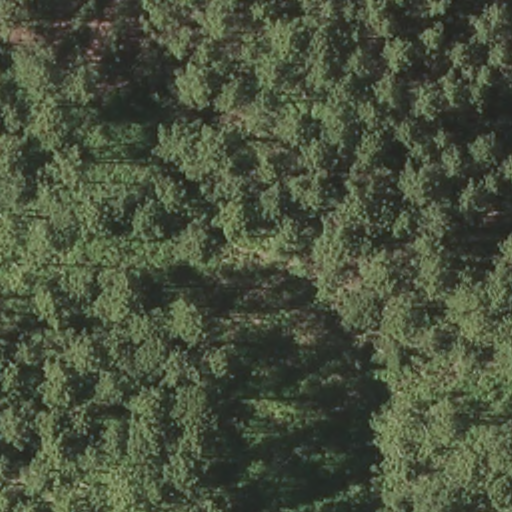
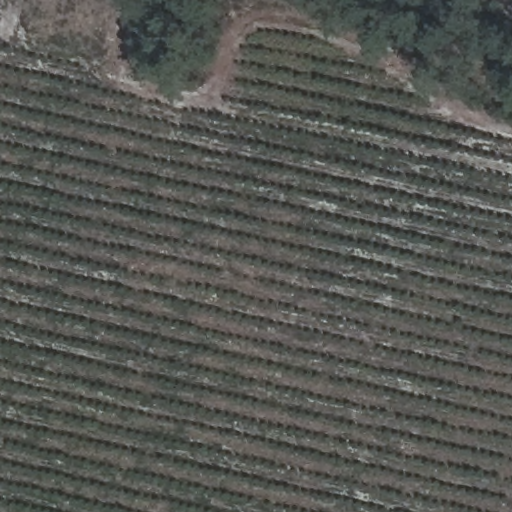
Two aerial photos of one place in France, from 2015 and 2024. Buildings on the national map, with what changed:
[]

